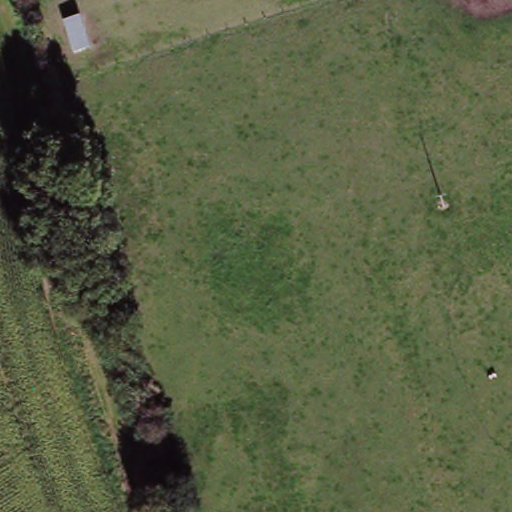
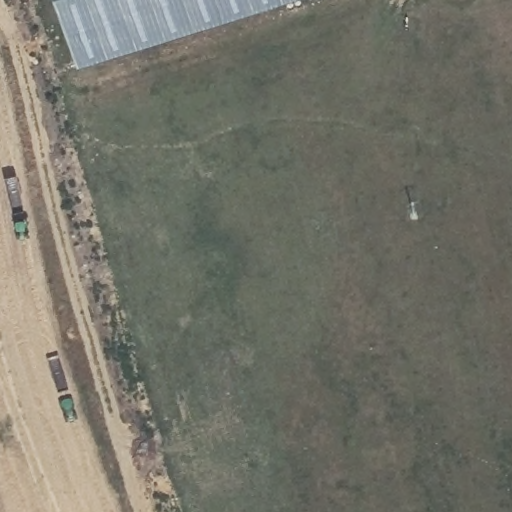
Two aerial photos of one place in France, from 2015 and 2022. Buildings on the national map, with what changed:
new [(82,59),(59,0),(246,0),(82,59)]

